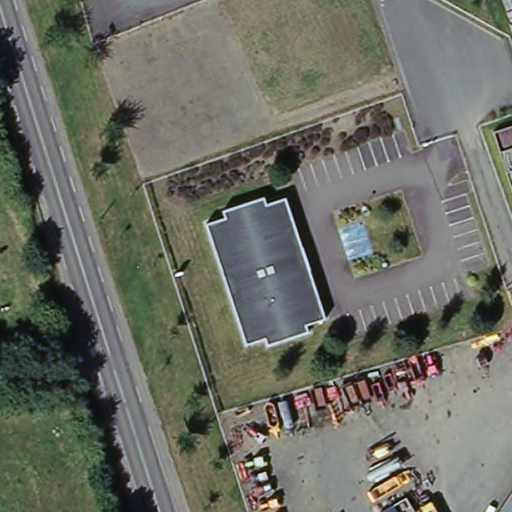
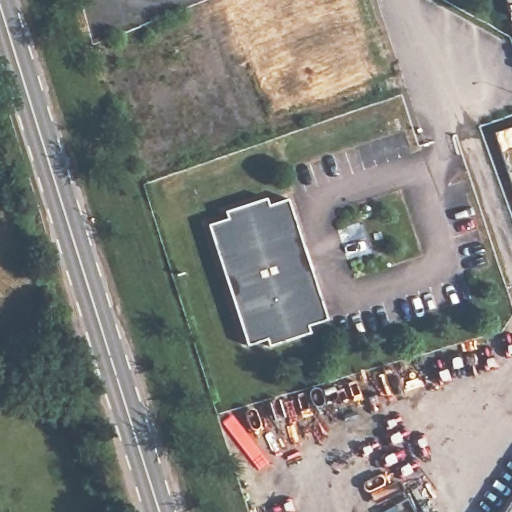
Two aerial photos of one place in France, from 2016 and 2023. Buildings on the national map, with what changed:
unchanged [(216,212),(257,198),(260,205),(279,198),(295,248),(303,270),(319,319),(300,326),(302,333),(261,348),(258,340),(239,347),(199,226),(219,219),(216,212)]
unchanged [(512,491),(512,512),(497,512),(512,491)]

